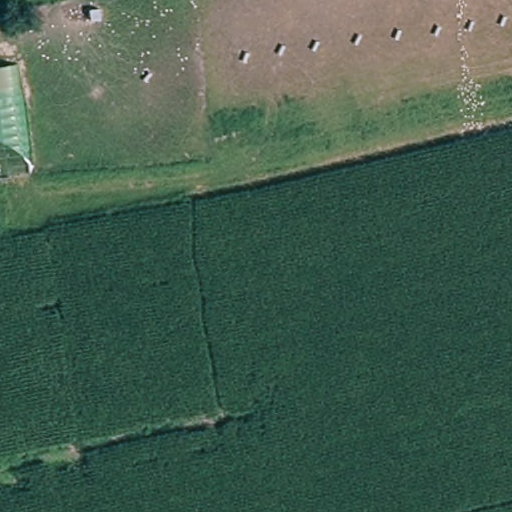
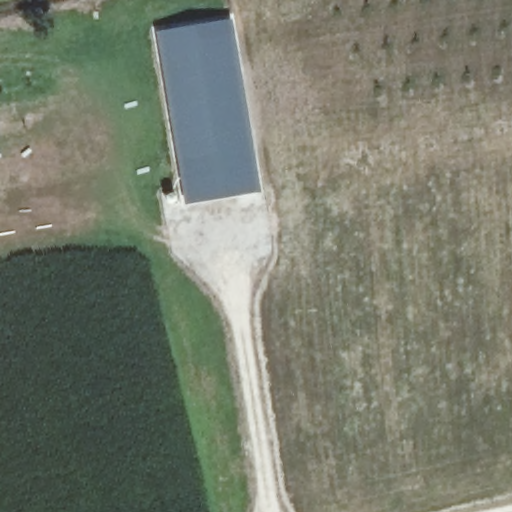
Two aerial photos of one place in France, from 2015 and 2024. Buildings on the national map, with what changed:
new [(154,31),(230,18),(259,191),(184,204),(154,31)]
demolished [(29,173),(0,178),(0,65),(15,64),(29,173)]

